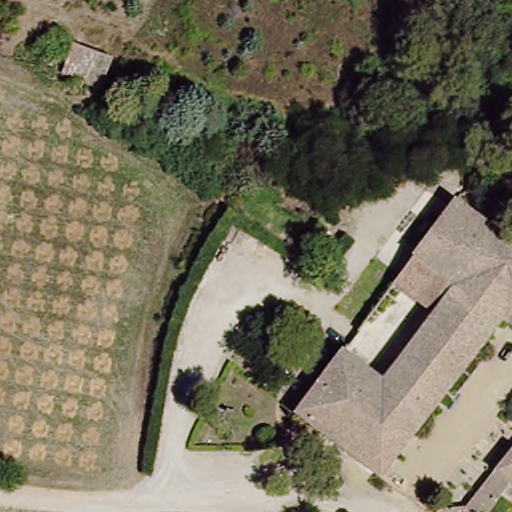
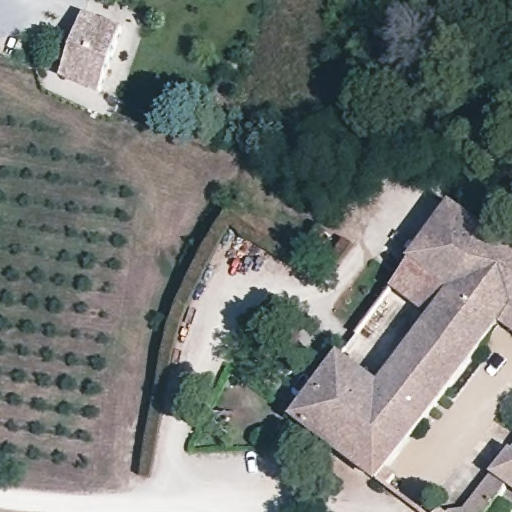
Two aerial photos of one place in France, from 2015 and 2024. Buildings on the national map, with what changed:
new [(67,45),(81,10),(119,24),(107,61),(67,45)]
unchanged [(67,45),(107,61),(96,90),(56,75),(67,45)]
unchanged [(453,205),(512,247),(512,332),(500,324),(392,469),(399,474),(389,487),(296,419),(453,205)]
unchanged [(509,487),(490,512),(439,512),(443,507),(466,509),(512,447),(512,488),(509,487)]

